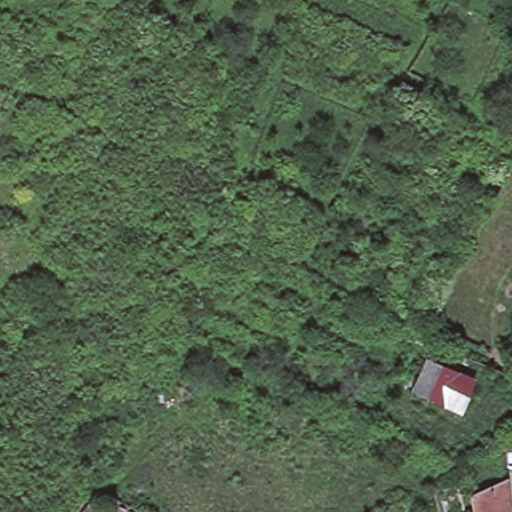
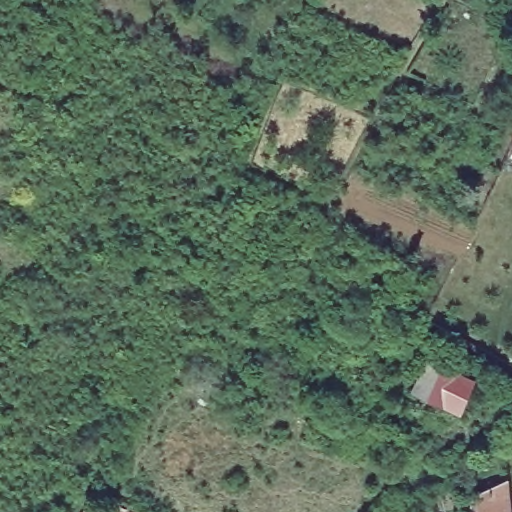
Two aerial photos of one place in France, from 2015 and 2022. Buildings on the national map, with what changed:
unchanged [(424,340),(422,346),(415,343),(418,336),(424,340)]
unchanged [(465,375),(453,402),(421,387),(433,361),(465,375)]
unchanged [(507,477),(511,512),(475,512),(472,493),(507,477)]

